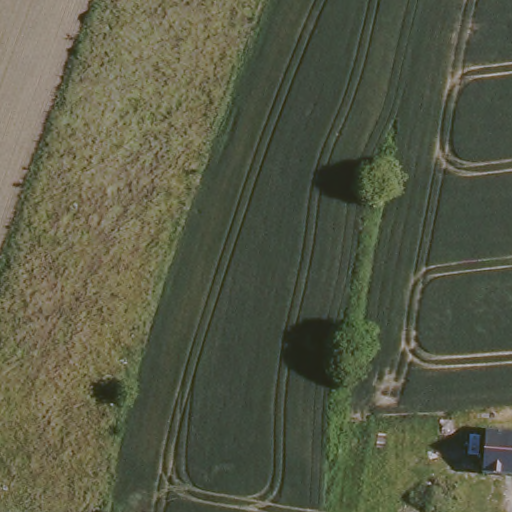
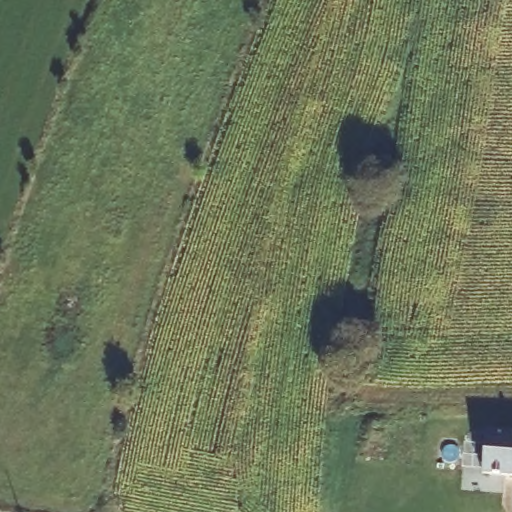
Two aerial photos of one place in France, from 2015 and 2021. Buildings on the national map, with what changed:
unchanged [(483,426),(512,428),(512,473),(479,470),(483,426)]

